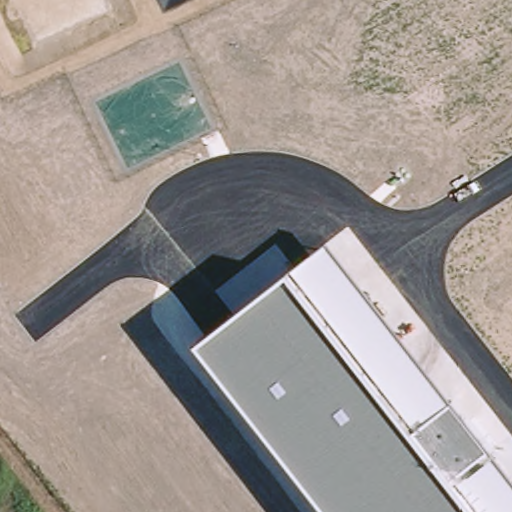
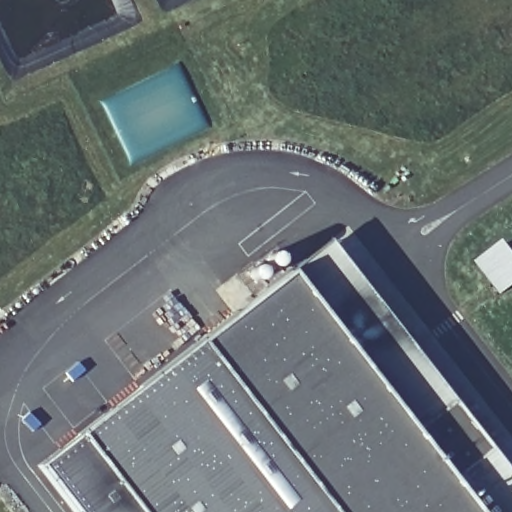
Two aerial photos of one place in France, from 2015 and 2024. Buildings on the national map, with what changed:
new [(106,100),(128,93),(126,90),(152,77),(165,78),(180,70),(202,113),(196,116),(201,126),(129,158),(106,100)]
unchanged [(512,477),(512,512),(473,512),(288,272),(327,241),(512,477)]
new [(500,297),(473,264),(502,242),(512,254),(512,288),(500,297)]
unchanged [(473,512),(330,512),(199,342),(288,272),(473,512)]
new [(79,435),(199,342),(330,512),(75,512),(39,465),(79,435)]

